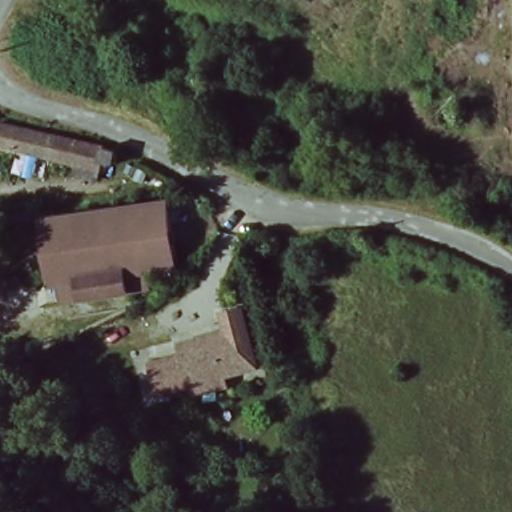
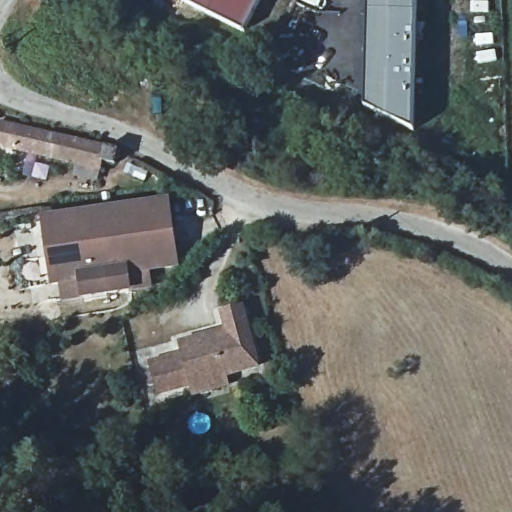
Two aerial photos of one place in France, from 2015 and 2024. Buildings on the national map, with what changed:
new [(244,31),(184,0),(259,0),(244,31)]
new [(369,15),(369,0),(417,0),(414,127),(413,127),(412,130),(364,107),(369,15)]
unchanged [(111,163),(109,171),(70,163),(0,147),(0,125),(113,152),(111,163)]
unchanged [(171,199),(179,265),(154,269),(157,289),(63,301),(61,287),(56,288),(44,216),(171,199)]
unchanged [(195,392),(192,383),(159,391),(155,374),(152,364),(185,356),(182,344),(230,332),(224,311),(243,306),(255,351),(258,366),(226,374),(228,384),(195,392)]

